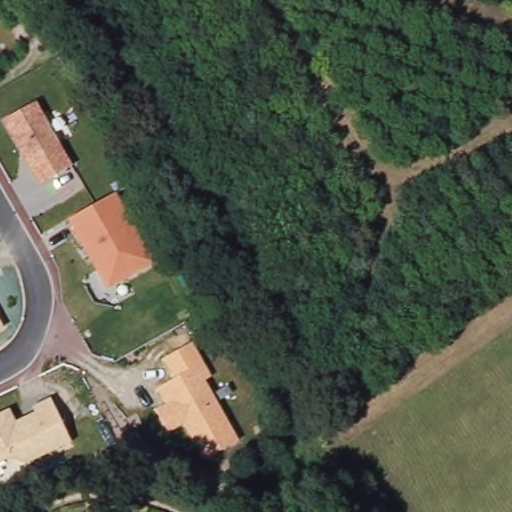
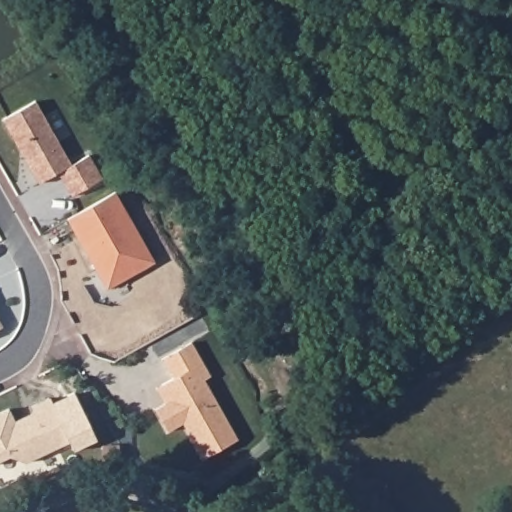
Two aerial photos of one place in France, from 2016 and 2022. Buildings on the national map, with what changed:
unchanged [(4,119),(38,101),(73,165),(41,184),(4,119)]
unchanged [(156,262),(106,290),(70,220),(116,194),(156,262)]
unchanged [(0,332),(0,316),(6,328),(0,332)]
unchanged [(213,380),(207,382),(238,440),(203,460),(184,425),(169,432),(156,410),(165,405),(156,389),(176,377),(165,359),(194,344),(213,380)]
unchanged [(34,414),(32,408),(52,398),(71,443),(16,467),(11,460),(0,465),(0,414),(10,410),(16,422),(34,414)]

